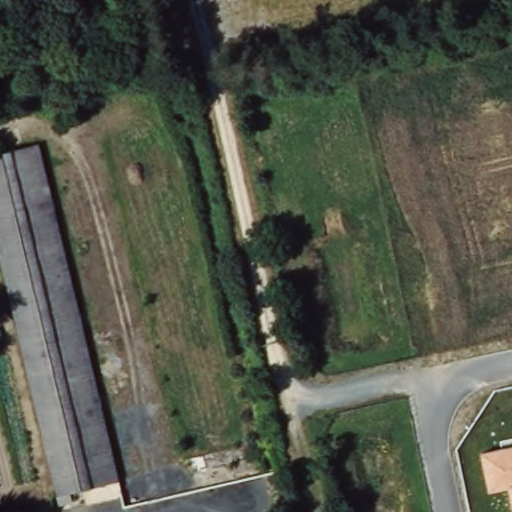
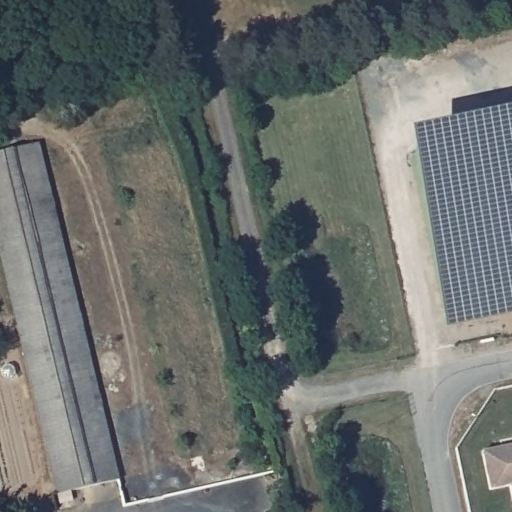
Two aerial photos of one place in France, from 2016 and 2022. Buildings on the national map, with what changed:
new [(448,325),(408,135),(512,114),(512,312),(448,325)]
unchanged [(0,233),(0,160),(39,150),(126,476),(69,493),(0,233)]
unchanged [(491,490),(483,451),(512,446),(512,504),(508,485),(491,490)]

